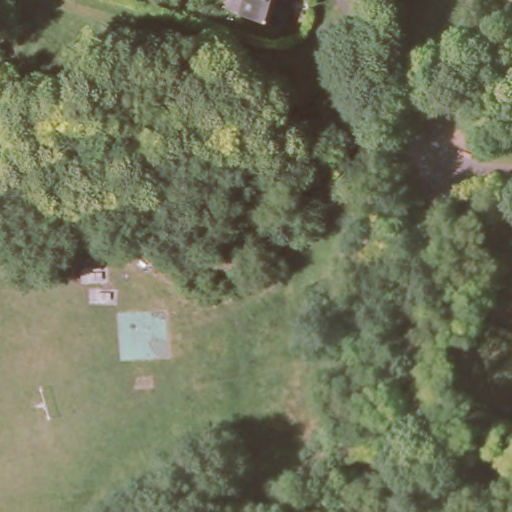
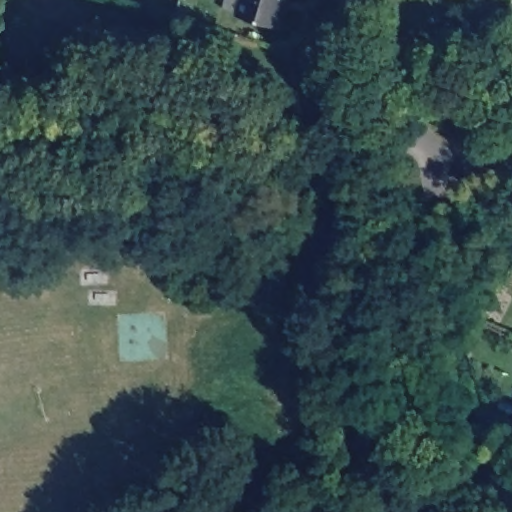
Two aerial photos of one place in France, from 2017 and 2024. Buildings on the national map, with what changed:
unchanged [(244,13),(248,0),(289,0),(282,24),(244,13)]

